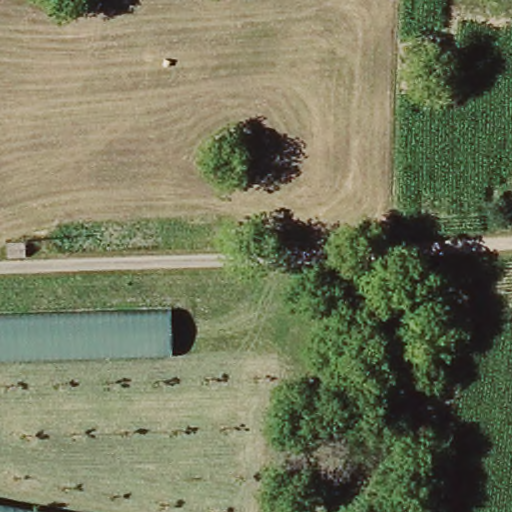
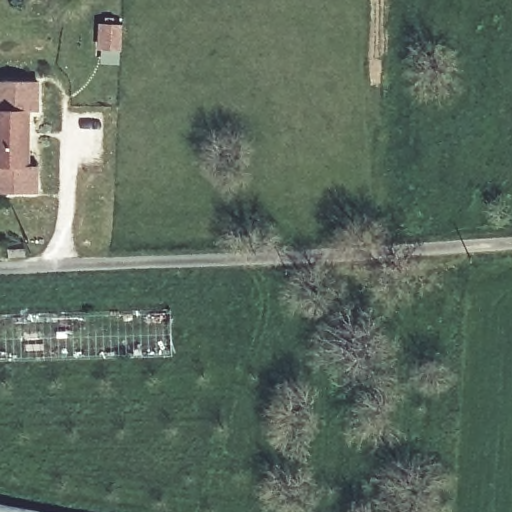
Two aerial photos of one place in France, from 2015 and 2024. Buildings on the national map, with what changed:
new [(104,21),(125,22),(124,46),(103,45),(104,21)]
new [(44,82),(44,113),(35,112),(34,167),(43,168),(43,195),(12,195),(0,195),(0,82),(10,82),(44,82)]
unchanged [(12,242),(30,241),(31,249),(32,257),(13,257),(12,251),(12,242)]
unchanged [(0,313),(168,309),(172,349),(0,357),(0,313)]
unchanged [(0,512),(0,500),(67,512),(0,512)]

